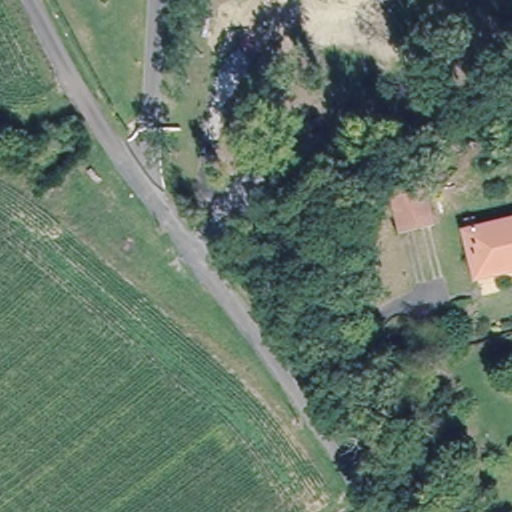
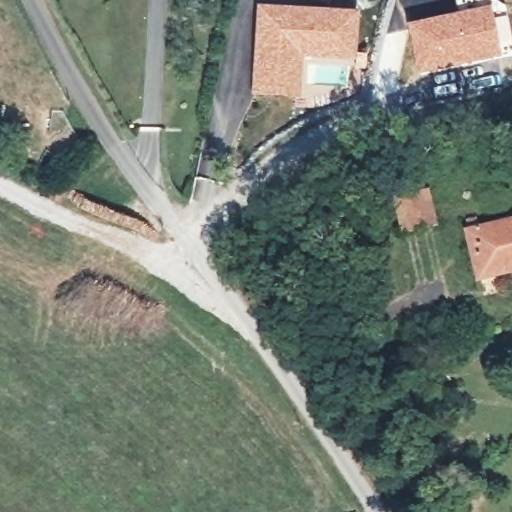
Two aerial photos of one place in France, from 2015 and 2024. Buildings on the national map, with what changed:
new [(453,0),(489,0),(491,2),(491,3),(494,19),(506,16),(511,45),(500,47),(502,57),(416,76),(404,24),(456,11),(453,0)]
new [(359,10),(356,60),(303,56),(300,98),(252,94),(259,5),(359,10)]
unchanged [(423,178),(431,214),(399,221),(390,185),(423,178)]
unchanged [(484,273),(474,232),(512,223),(512,267),(484,273)]
unchanged [(442,395),(446,410),(421,416),(418,400),(442,395)]

